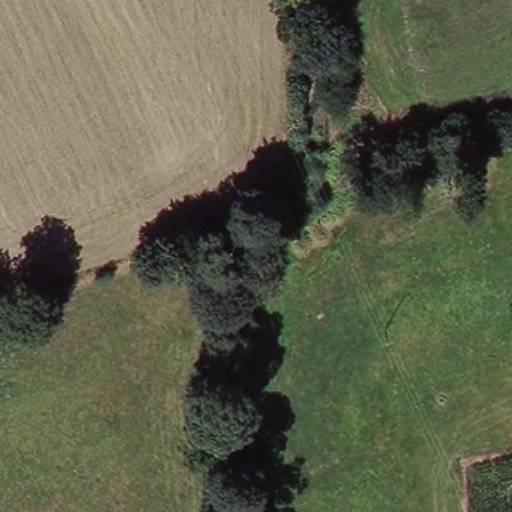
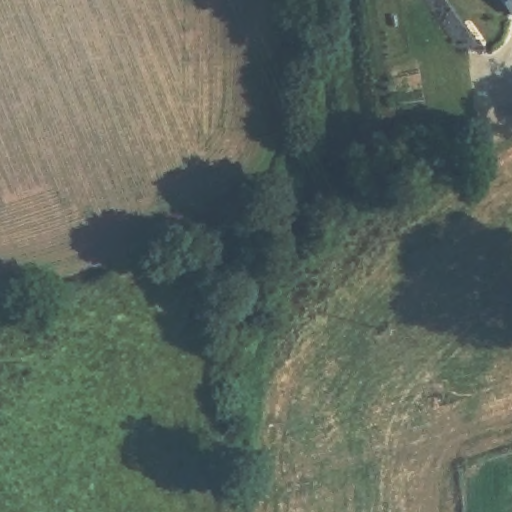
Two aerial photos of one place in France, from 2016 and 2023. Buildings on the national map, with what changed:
new [(501,0),(512,0),(512,13),(511,14),(501,0)]

